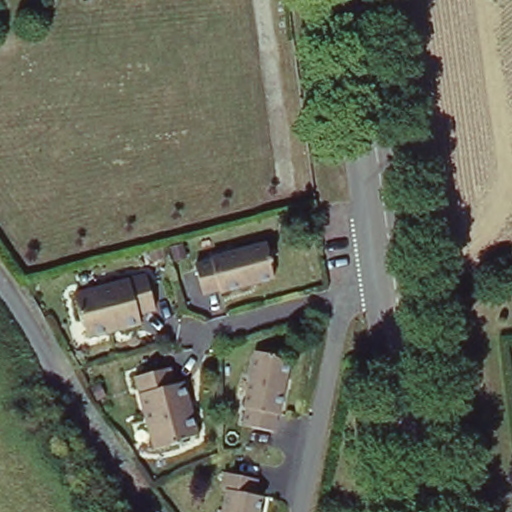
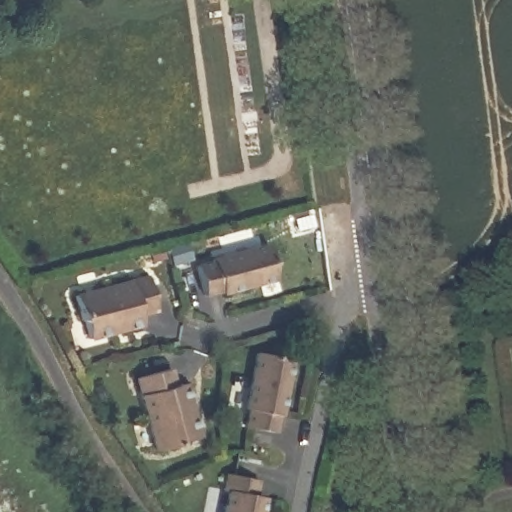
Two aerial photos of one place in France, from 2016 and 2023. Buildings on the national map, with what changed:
unchanged [(213,262),(212,260),(266,243),(271,261),(270,265),(274,277),(222,293),(221,291),(204,296),(196,267),(213,262)]
unchanged [(148,268),(157,302),(141,307),(144,316),(91,332),(86,315),(80,311),(74,291),(148,268)]
unchanged [(276,348),(278,352),(292,353),(283,407),(281,407),(277,424),(248,419),(251,402),(249,402),(258,346),(276,348)]
unchanged [(163,364),(168,380),(177,377),(193,430),(176,435),(172,442),(151,448),(130,374),(163,364)]
unchanged [(255,487),(264,488),(260,512),(223,512),(228,483),(223,483),(227,466),(258,472),(255,487)]

